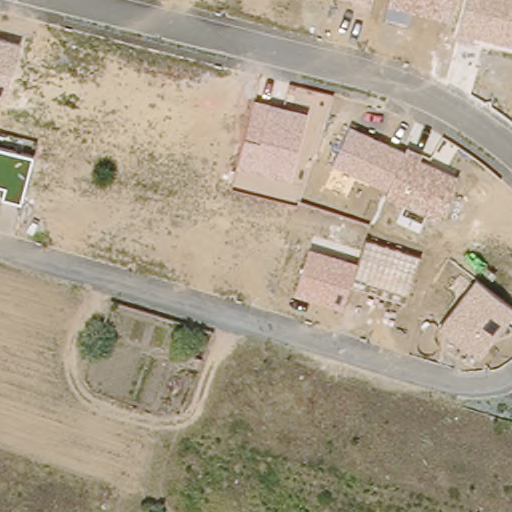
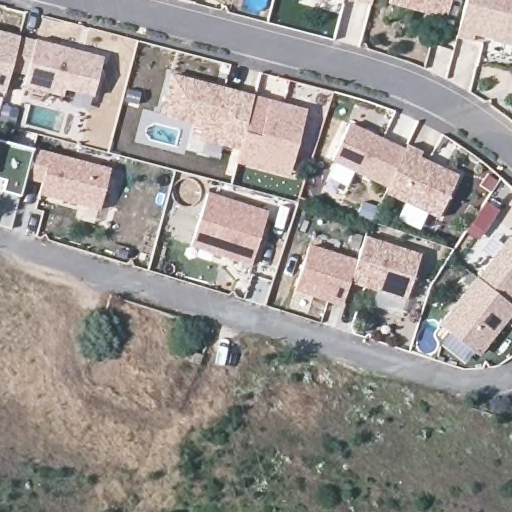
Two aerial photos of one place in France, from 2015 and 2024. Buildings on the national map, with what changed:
unchanged [(354,1),(354,0),(373,0),(371,6),(354,1)]
unchanged [(389,3),(390,0),(450,0),(446,17),(389,3)]
unchanged [(473,41),(456,36),(466,0),(512,0),(512,43),(474,33),(473,41)]
unchanged [(0,90),(0,31),(19,36),(6,91),(0,90)]
new [(65,89),(63,96),(24,86),(36,39),(104,56),(93,98),(65,89)]
new [(240,150),(199,140),(202,126),(160,115),(169,74),(254,96),(240,150)]
unchanged [(236,163),(254,96),(307,109),(290,177),(236,163)]
unchanged [(385,194),(389,188),(334,161),(351,125),(404,150),(407,144),(424,151),(420,158),(459,175),(438,219),(385,194)]
unchanged [(21,197),(3,192),(6,180),(0,179),(0,141),(33,150),(21,197)]
new [(39,194),(43,183),(25,179),(33,150),(110,169),(100,211),(39,194)]
new [(213,197),(274,216),(258,267),(233,259),(197,248),(198,243),(213,197)]
new [(510,236),(512,237),(512,299),(509,304),(476,279),(510,236)]
unchanged [(358,261),(366,237),(419,254),(407,300),(351,283),(358,261)]
unchanged [(351,283),(344,307),(295,291),(310,246),(358,261),(351,283)]
unchanged [(512,306),(512,314),(479,356),(440,324),(476,279),(512,306)]

